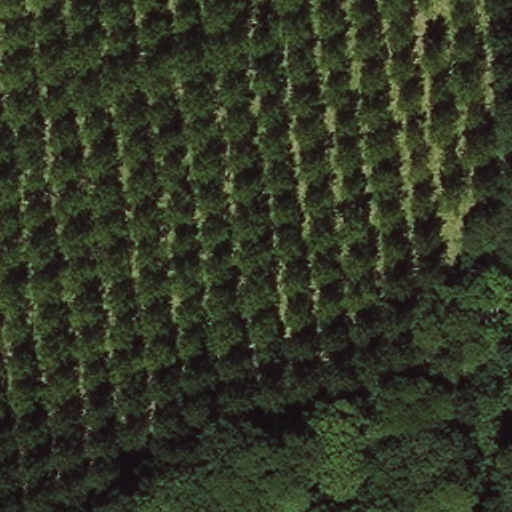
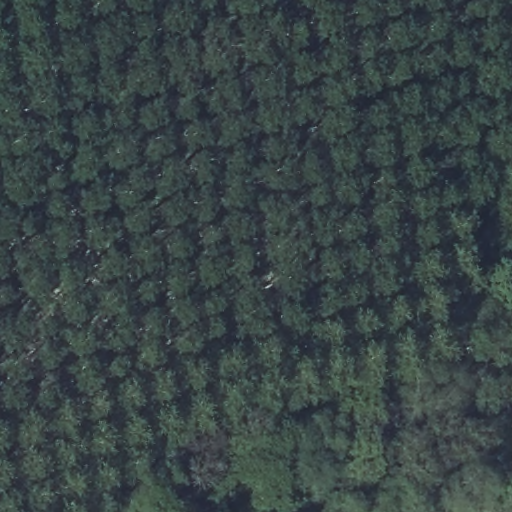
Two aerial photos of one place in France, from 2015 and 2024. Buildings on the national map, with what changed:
[]

